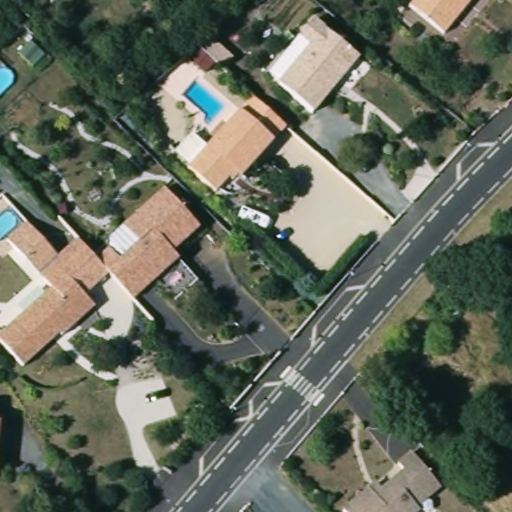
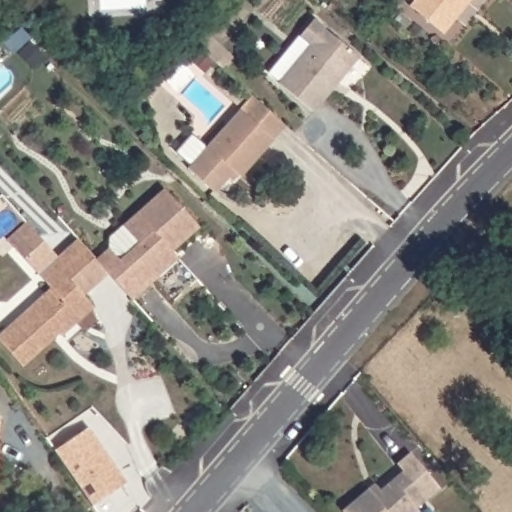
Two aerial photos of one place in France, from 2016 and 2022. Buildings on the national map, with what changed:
unchanged [(445,33),(411,5),(415,0),(472,0),(445,33)]
unchanged [(282,79),(315,40),(303,31),(317,15),(362,52),(316,107),(282,79)]
unchanged [(242,163),(222,185),(195,160),(254,95),(261,102),(287,125),(254,162),(252,160),(246,167),(242,163)]
unchanged [(127,283),(121,277),(102,256),(100,254),(112,242),(123,254),(142,236),(127,220),(168,183),(203,221),(176,246),(182,252),(160,273),(137,294),(127,283)]
unchanged [(9,236),(29,218),(42,233),(22,250),(9,236)]
unchanged [(102,283),(88,295),(98,307),(85,319),(66,337),(62,335),(27,367),(0,338),(55,288),(47,280),(42,275),(56,263),(71,249),(102,283)]
unchanged [(461,302),(445,320),(427,303),(443,285),(461,302)]
unchanged [(5,418),(0,460),(0,417),(5,418)]
new [(91,426),(128,482),(94,506),(56,450),(91,426)]
unchanged [(343,512),(367,492),(373,486),(379,493),(402,473),(397,467),(411,455),(439,490),(426,501),(415,509),(417,512),(343,512)]

